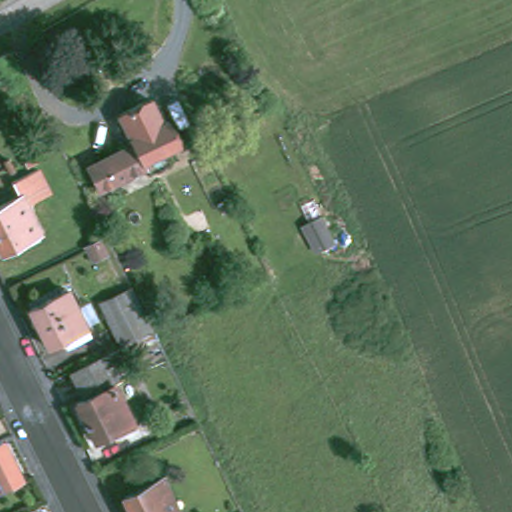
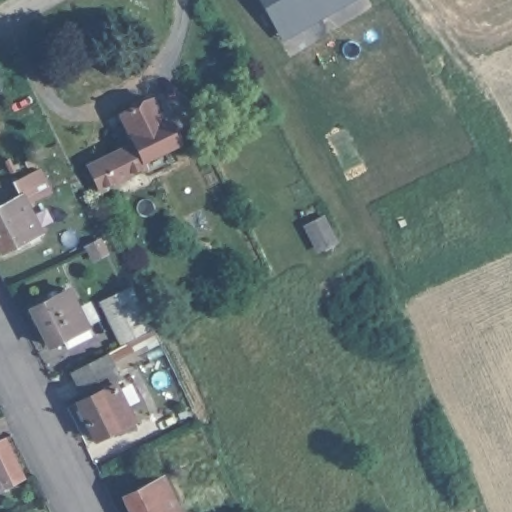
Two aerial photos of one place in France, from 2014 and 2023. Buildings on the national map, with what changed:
new [(259,0),(352,0),(284,42),(259,0)]
unchanged [(167,120),(178,142),(143,161),(145,166),(99,189),(87,167),(133,144),(118,114),(150,99),(162,122),(167,120)]
unchanged [(10,173),(7,167),(4,162),(9,159),(12,165),(15,171),(10,173)]
unchanged [(2,252),(0,249),(0,206),(5,204),(0,192),(0,190),(15,183),(21,196),(40,232),(2,252)]
unchanged [(87,246),(98,241),(105,252),(93,257),(87,246)]
unchanged [(153,326),(127,339),(107,299),(133,286),(153,326)]
unchanged [(48,346),(30,308),(68,290),(86,327),(90,333),(72,342),(68,336),(48,346)]
unchanged [(118,436),(115,430),(95,440),(77,402),(83,399),(74,380),(69,370),(73,368),(107,352),(122,381),(115,384),(133,421),(136,427),(118,436)]
unchanged [(7,440),(25,477),(0,489),(0,443),(7,440)]
unchanged [(123,497),(161,477),(178,512),(131,512),(123,497)]

